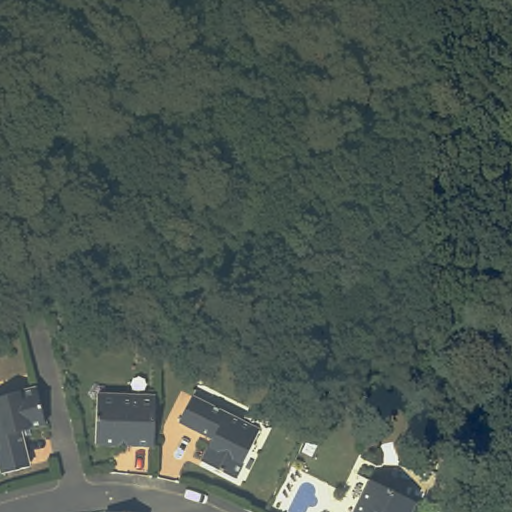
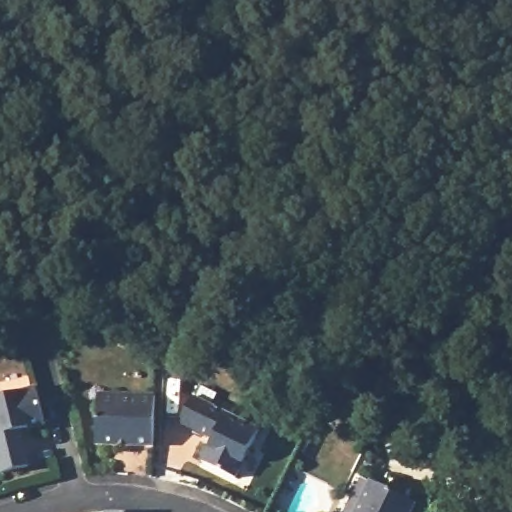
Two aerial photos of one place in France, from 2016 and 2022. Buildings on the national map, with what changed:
unchanged [(0,398),(37,390),(45,424),(20,430),(30,468),(2,475),(0,464),(0,398)]
unchanged [(99,395),(155,398),(154,448),(96,445),(99,395)]
unchanged [(202,467),(214,444),(180,427),(194,402),(260,435),(236,483),(202,467)]
unchanged [(416,503),(412,512),(356,512),(371,481),(416,503)]

